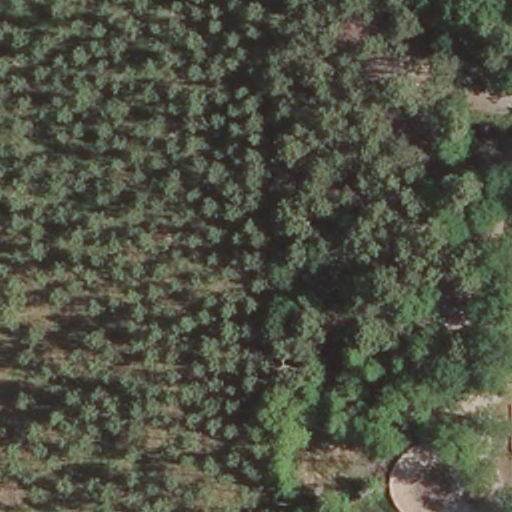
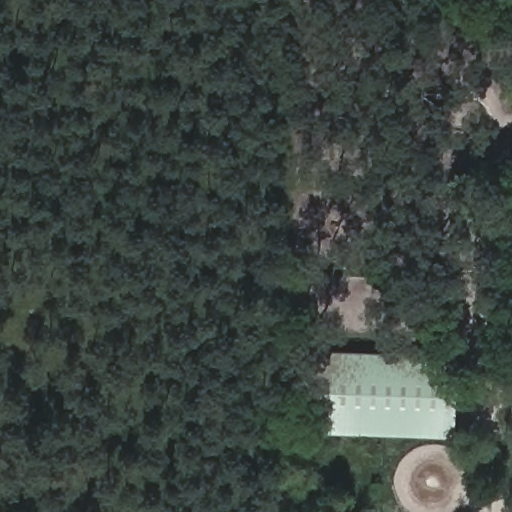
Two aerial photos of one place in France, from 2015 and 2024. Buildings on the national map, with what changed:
new [(298,432),(301,350),(456,355),(453,438),(298,432)]

